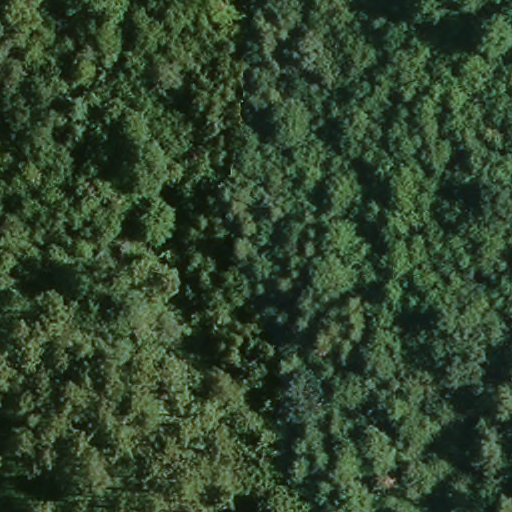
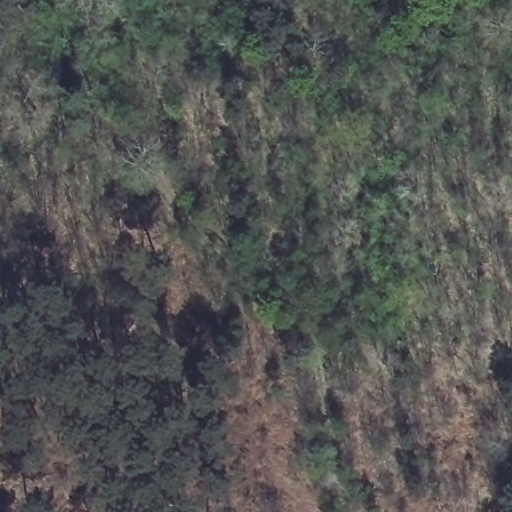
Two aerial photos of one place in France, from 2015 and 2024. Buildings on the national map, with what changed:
[]

